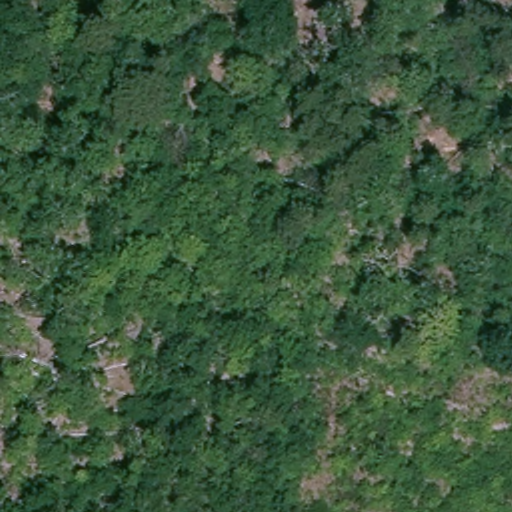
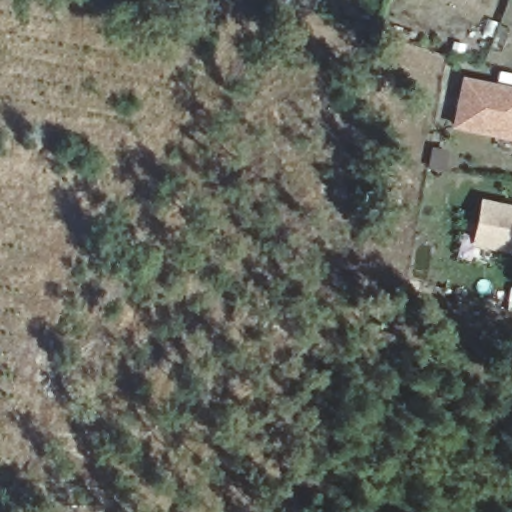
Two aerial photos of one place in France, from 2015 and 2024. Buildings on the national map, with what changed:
new [(453,128),(463,77),(512,89),(512,140),(453,128)]
new [(473,245),(481,199),(512,206),(512,254),(473,245)]

